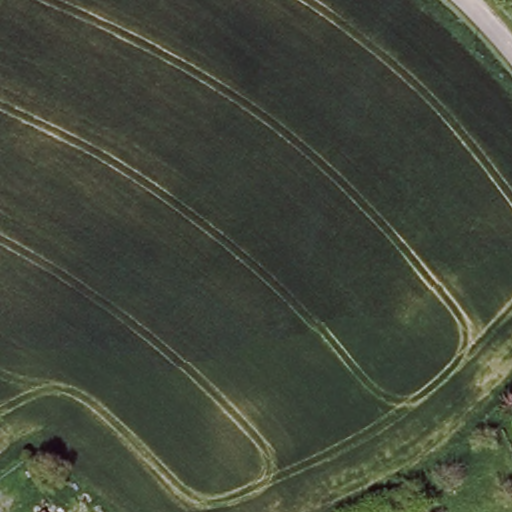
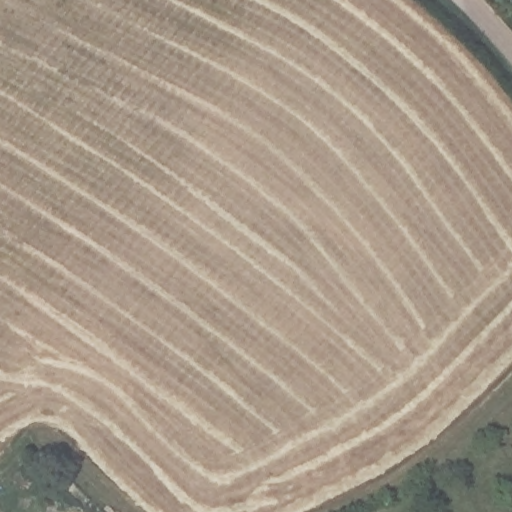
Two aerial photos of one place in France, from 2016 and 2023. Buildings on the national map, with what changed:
unchanged [(43,507),(47,512),(35,512),(43,507)]

